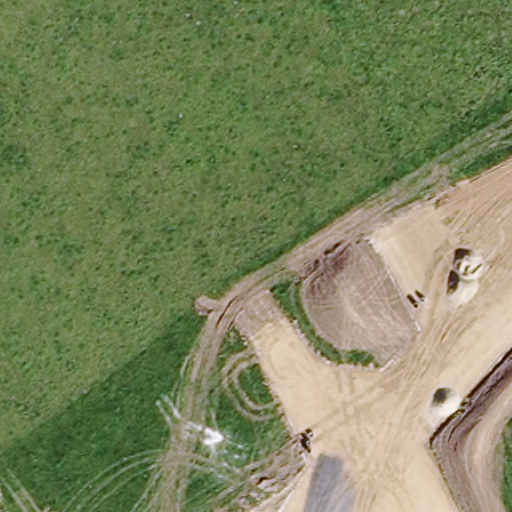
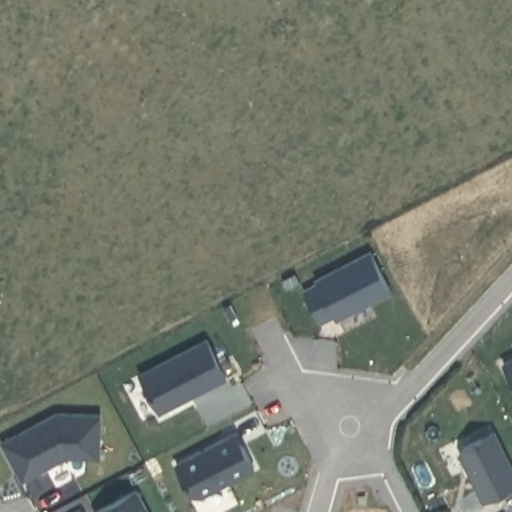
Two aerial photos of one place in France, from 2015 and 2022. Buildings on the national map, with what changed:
new [(318,283),(316,280),(370,252),(390,291),(337,318),(335,315),(320,322),(304,291),(318,283)]
new [(207,340),(226,378),(160,413),(140,375),(207,340)]
new [(503,363),(512,358),(512,381),(503,363)]
new [(57,414),(100,416),(99,458),(67,456),(22,480),(2,443),(57,414)]
new [(462,446),(494,431),(512,468),(512,486),(483,500),(460,453),(462,446)]
new [(236,433),(254,468),(200,496),(192,495),(176,465),(236,433)]
new [(136,490),(148,512),(94,512),(136,490)]

